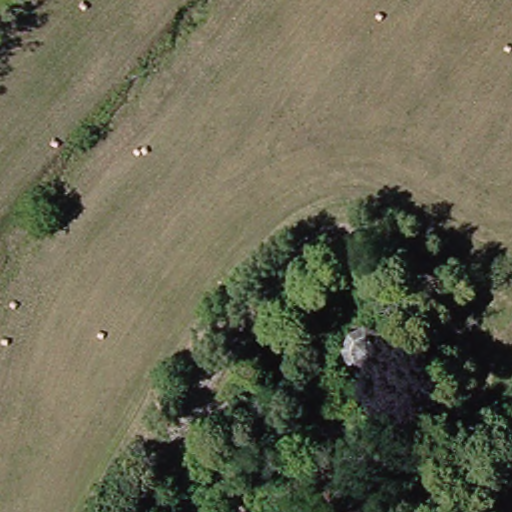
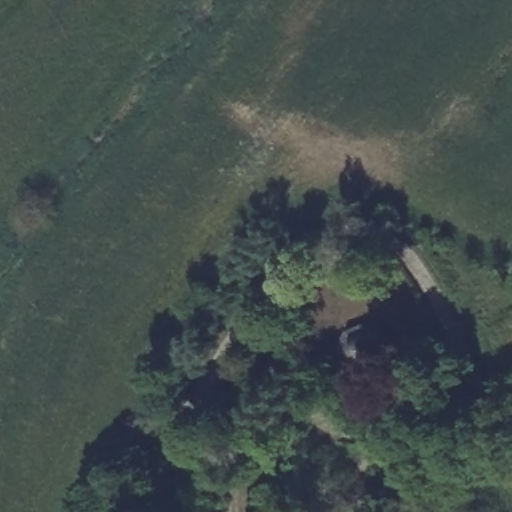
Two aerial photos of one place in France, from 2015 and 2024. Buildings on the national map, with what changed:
unchanged [(385,310),(388,318),(388,329),(383,335),(376,337),(364,334),(361,326),(362,317),(365,310),(373,307),(385,310)]

